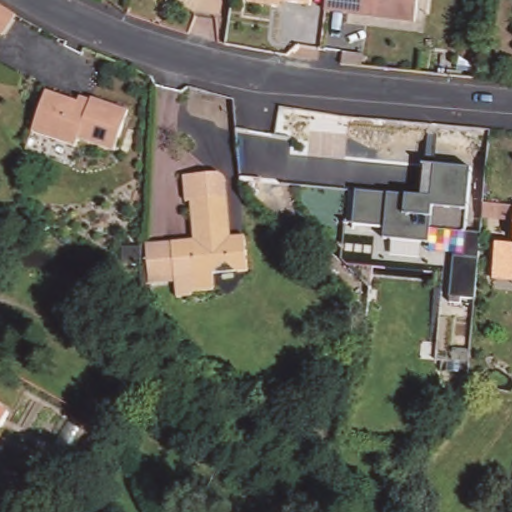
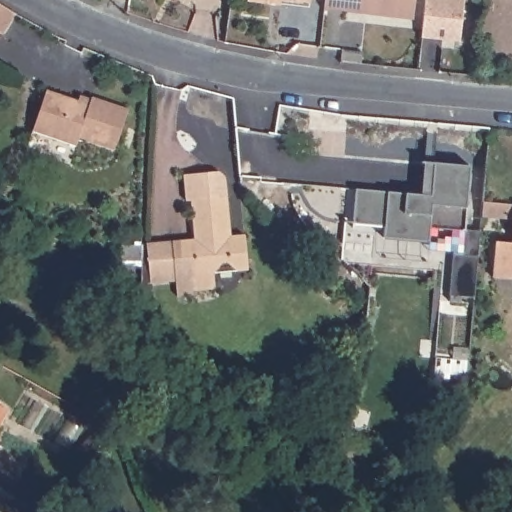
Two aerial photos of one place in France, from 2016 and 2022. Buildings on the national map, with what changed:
unchanged [(271,3),(249,1),(249,0),(281,0),(280,4),(271,3)]
unchanged [(312,2),(286,0),(312,0),(312,2)]
unchanged [(420,16),(325,7),(326,0),(421,0),(420,16)]
new [(424,0),(463,0),(460,42),(420,39),(424,0)]
unchanged [(4,44),(0,42),(0,10),(19,22),(4,44)]
unchanged [(93,105),(96,98),(132,115),(115,152),(80,136),(77,142),(35,123),(52,86),(93,105)]
unchanged [(356,188),(388,191),(405,192),(421,194),(425,161),(470,165),(463,228),(432,226),(430,239),(381,235),(384,222),(350,218),(356,188)]
unchanged [(155,237),(175,238),(195,238),(193,200),(187,200),(187,174),(219,174),(220,174),(220,175),(221,175),(222,175),(223,176),(224,176),(225,177),(225,178),(226,178),(226,179),(227,180),(227,181),(227,182),(228,183),(229,199),(229,226),(220,234),(225,239),(248,239),(249,275),(240,275),(232,264),(222,263),(214,275),(214,287),(211,289),(192,289),(188,293),(176,292),(175,278),(155,277),(155,237)]
unchanged [(483,220),(485,209),(485,206),(512,208),(512,222),(483,220)]
unchanged [(455,252),(461,252),(464,231),(478,232),(475,297),(451,296),(455,252)]
unchanged [(496,279),(497,269),(498,244),(512,246),(512,281),(496,279)]
unchanged [(4,401),(0,407),(0,390),(7,394),(4,401)]
unchanged [(0,436),(0,407),(12,414),(0,436)]
unchanged [(124,454),(114,466),(105,458),(116,446),(124,454)]

